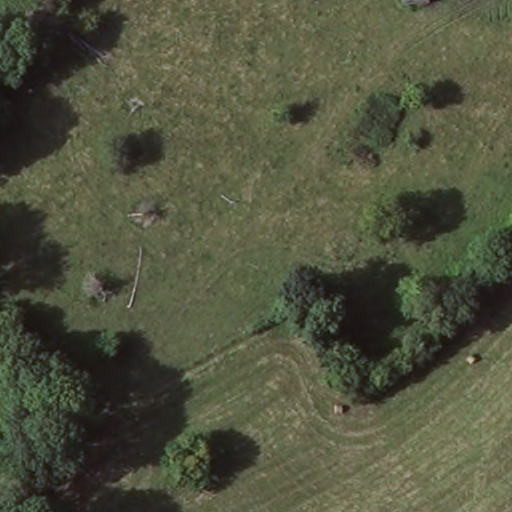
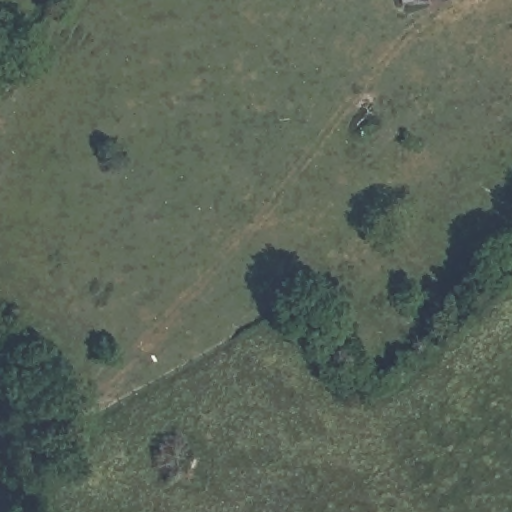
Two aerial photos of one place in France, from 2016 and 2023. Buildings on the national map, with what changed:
unchanged [(431,0),(432,2),(402,4),(401,0),(431,0)]

